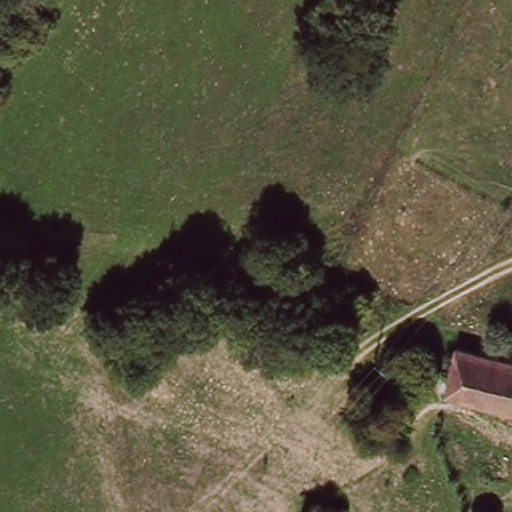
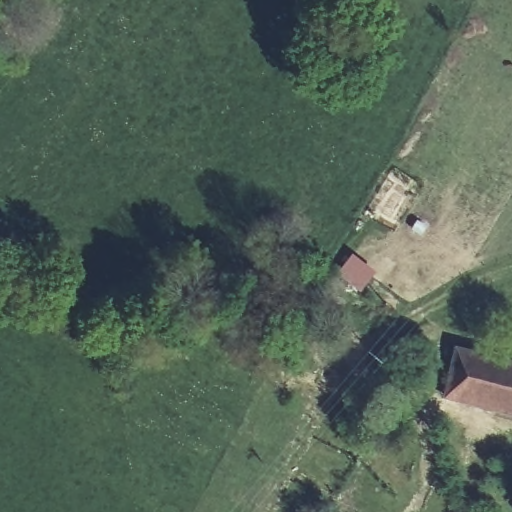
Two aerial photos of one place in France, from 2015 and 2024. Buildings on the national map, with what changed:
new [(361,292),(339,275),(353,256),(376,275),(361,292)]
unchanged [(441,396),(452,346),(512,362),(512,416),(441,396)]

